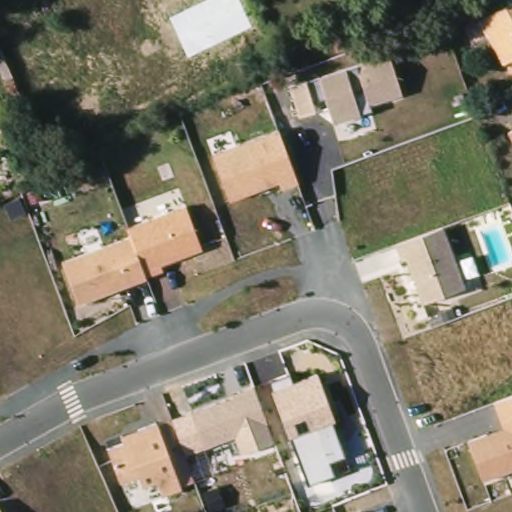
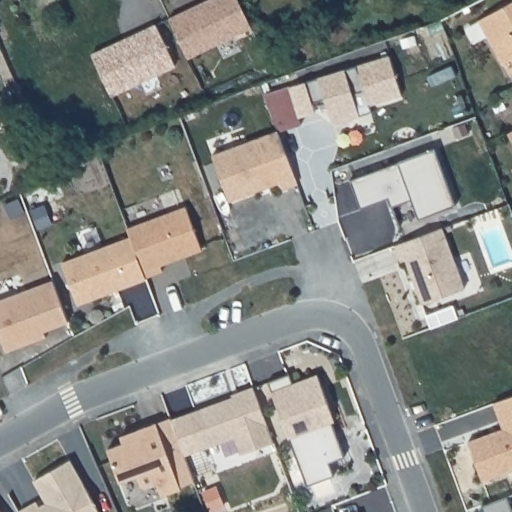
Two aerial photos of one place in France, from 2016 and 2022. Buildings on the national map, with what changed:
new [(239,0),(253,27),(189,58),(170,17),(206,0),(239,0)]
unchanged [(485,20),(512,4),(512,62),(509,64),(485,20)]
new [(176,65),(111,94),(93,54),(157,24),(176,65)]
unchanged [(290,86),(389,55),(400,95),(369,104),(364,90),(352,92),(358,116),(332,124),(327,107),(300,117),(290,86)]
new [(290,86),(300,117),(302,125),(279,132),(278,129),(266,93),(290,86)]
unchanged [(212,154),(278,129),(298,182),(281,190),(279,184),(230,201),(212,154)]
new [(435,148),(456,206),(419,219),(412,200),(392,207),(389,199),(361,209),(350,180),(435,148)]
unchanged [(185,207),(202,251),(162,266),(163,271),(146,277),(128,229),(185,207)]
unchanged [(406,261),(401,262),(395,246),(445,229),(466,287),(423,303),(406,261)]
unchanged [(63,263),(131,237),(146,277),(80,305),(63,263)]
new [(68,322),(44,330),(47,337),(5,352),(0,337),(0,299),(52,280),(68,322)]
unchanged [(272,390),(317,375),(342,457),(329,462),(334,476),(308,486),(272,390)]
unchanged [(170,419),(191,411),(252,388),(273,442),(242,456),(235,438),(205,449),(183,456),(170,419)]
unchanged [(503,427),(493,401),(512,394),(512,471),(484,481),(467,441),(503,427)]
unchanged [(159,496),(154,482),(143,486),(136,474),(120,480),(107,450),(125,442),(123,436),(170,419),(194,483),(159,496)]
new [(100,512),(20,512),(20,511),(36,502),(39,505),(47,503),(34,480),(71,460),(100,512)]
new [(512,510),(512,512),(483,512),(481,504),(507,495),(512,510)]

